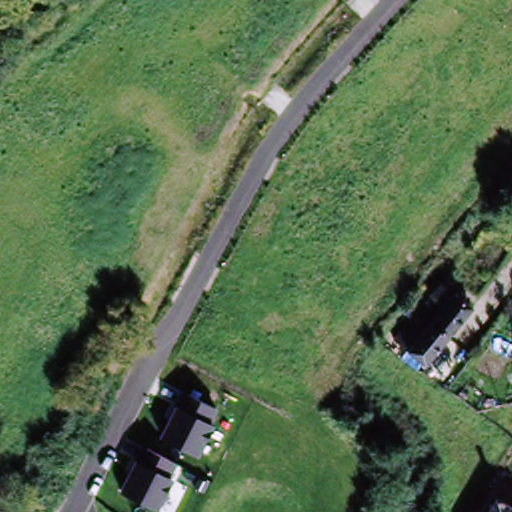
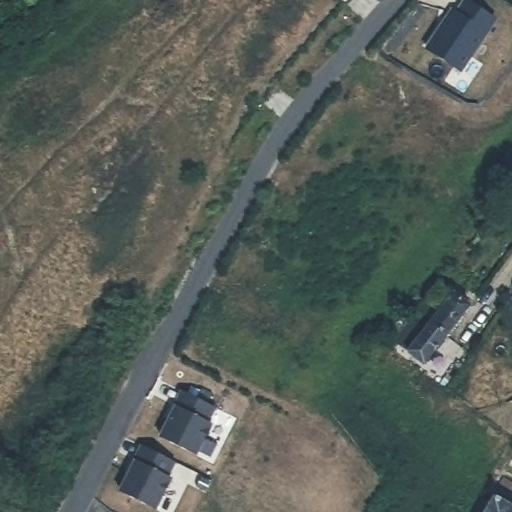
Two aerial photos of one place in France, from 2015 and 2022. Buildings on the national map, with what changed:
new [(455,12),(463,0),(465,0),(492,20),(457,69),(424,46),(450,9),(455,12)]
unchanged [(445,288),(473,310),(450,341),(422,318),(445,288)]
unchanged [(510,302),(512,300),(512,316),(510,302)]
unchanged [(450,341),(427,370),(398,348),(422,318),(450,341)]
unchanged [(182,390),(217,410),(197,456),(160,440),(182,390)]
unchanged [(119,492),(141,445),(177,465),(157,512),(154,512),(119,492)]
unchanged [(503,484),(512,489),(512,512),(487,512),(503,484)]

